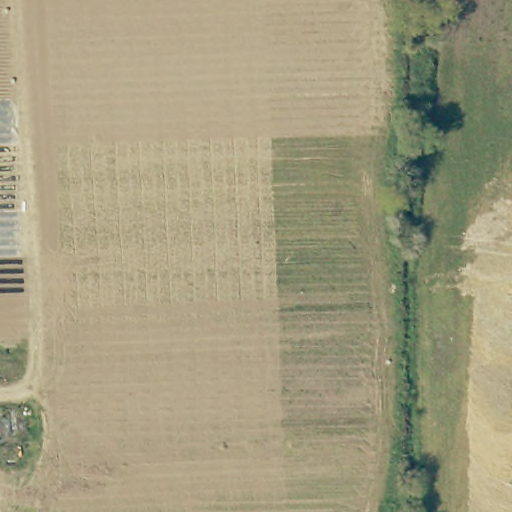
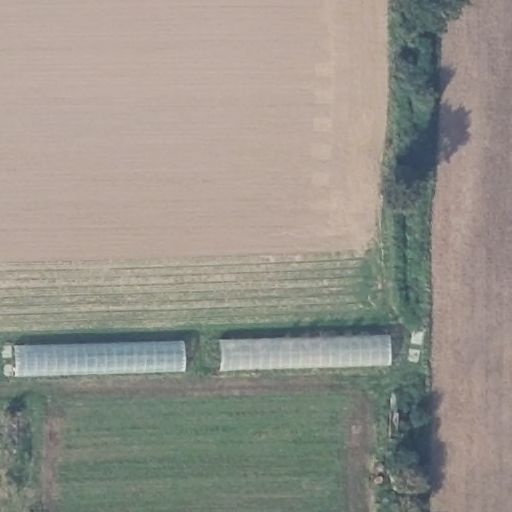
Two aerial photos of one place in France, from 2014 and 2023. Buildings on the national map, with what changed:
new [(397,363),(209,370),(209,342),(394,337),(397,363)]
new [(194,369),(4,377),(1,349),(193,341),(194,369)]

